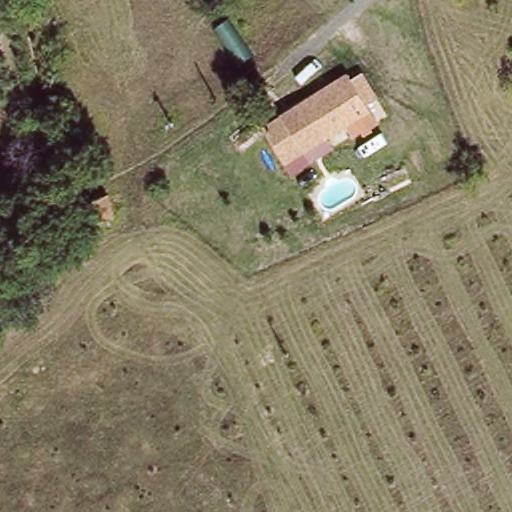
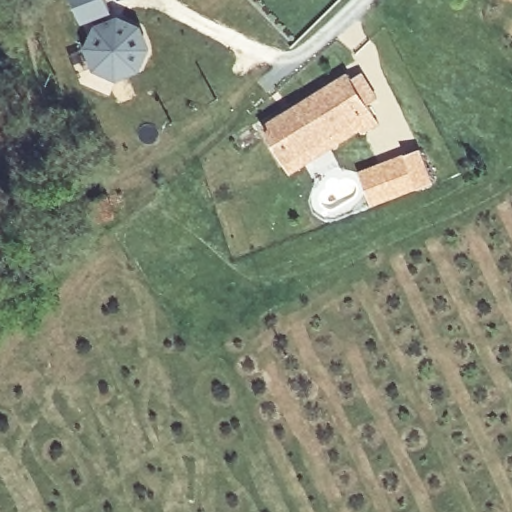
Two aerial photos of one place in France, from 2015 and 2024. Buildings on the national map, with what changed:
new [(94,28),(91,18),(103,14),(107,23),(115,19),(136,28),(144,49),(135,70),(114,78),(94,70),(84,49),(94,28)]
unchanged [(354,77),(376,109),(339,132),(319,101),(354,77)]
unchanged [(291,162),(271,131),(319,101),(339,132),(291,162)]
new [(418,150),(431,183),(417,188),(370,206),(358,173),(405,156),(418,150)]
unchanged [(96,200),(111,191),(117,211),(104,217),(96,200)]

